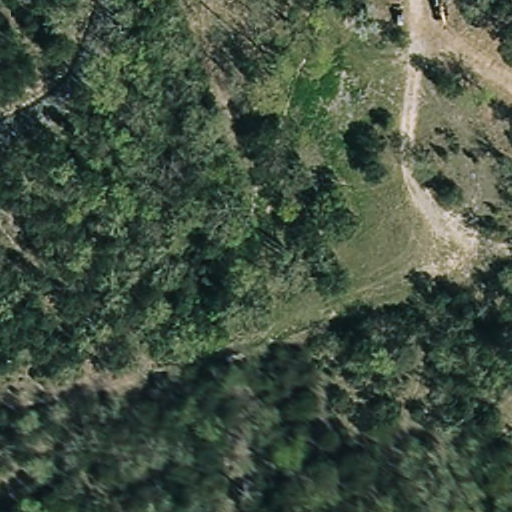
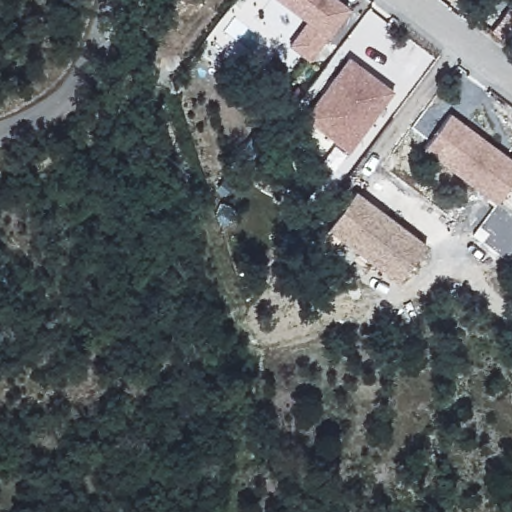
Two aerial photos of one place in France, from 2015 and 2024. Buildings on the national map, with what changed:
new [(304,19),(280,0),(342,0),(350,6),(327,35),(309,60),(289,43),(304,19)]
new [(350,56),(395,91),(349,151),(304,117),(350,56)]
new [(450,112),(512,158),(512,181),(497,202),(423,148),(450,112)]
new [(356,190),(427,244),(398,281),(327,229),(356,190)]

